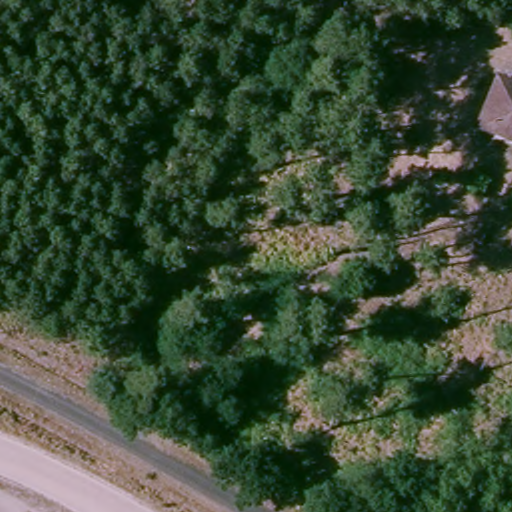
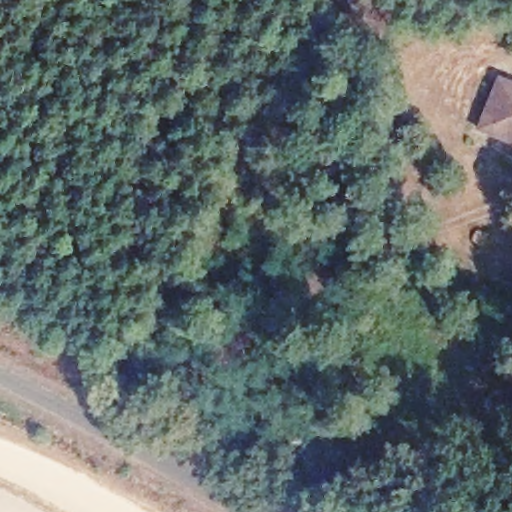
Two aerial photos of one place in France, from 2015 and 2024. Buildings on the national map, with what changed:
unchanged [(495,87),(512,94),(512,143),(478,129),(495,87)]

